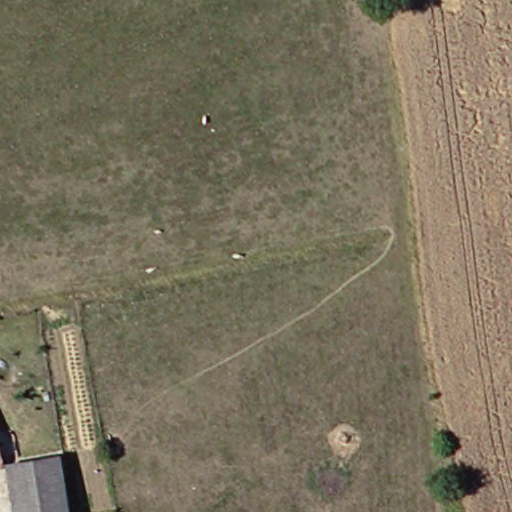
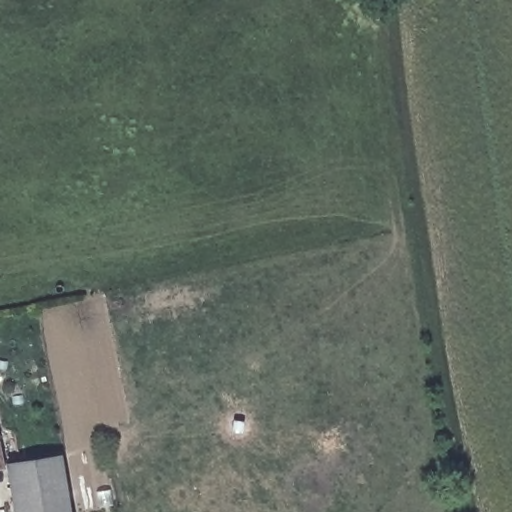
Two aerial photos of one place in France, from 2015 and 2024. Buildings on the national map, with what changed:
unchanged [(4,461),(0,461),(0,444),(4,461)]
unchanged [(6,461),(54,452),(58,452),(61,470),(68,507),(65,507),(38,512),(15,512),(9,478),(6,461)]
unchanged [(68,507),(69,512),(38,512),(65,507),(68,507)]

